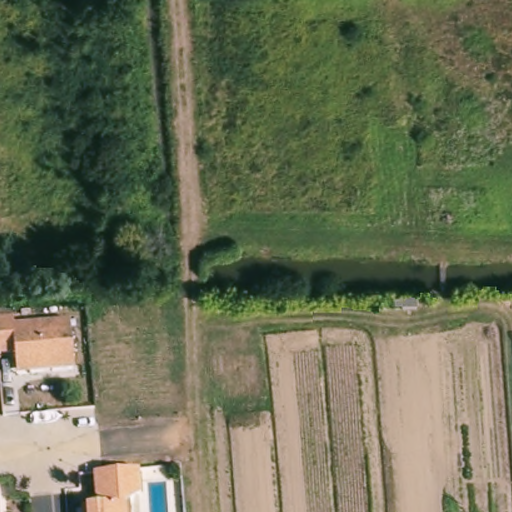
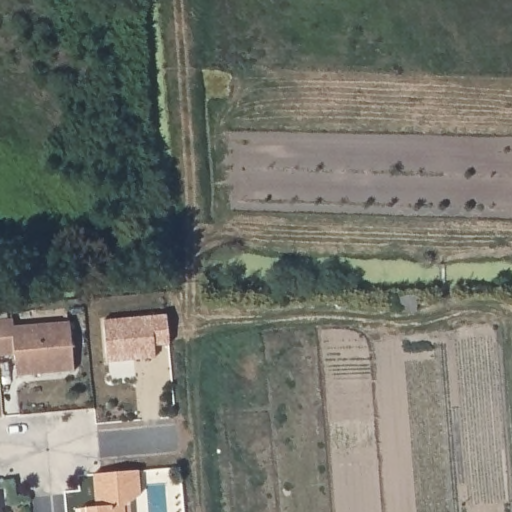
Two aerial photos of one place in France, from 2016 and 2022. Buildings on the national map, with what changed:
new [(175,310),(178,340),(163,341),(164,354),(116,358),(112,316),(175,310)]
unchanged [(14,363),(13,351),(0,352),(0,316),(11,316),(12,323),(68,318),(72,367),(28,371),(15,372),(14,363)]
unchanged [(512,350),(512,376),(510,350),(512,350)]
unchanged [(90,506),(100,505),(97,471),(142,467),(144,492),(139,496),(140,512),(85,512),(85,506),(90,506)]

